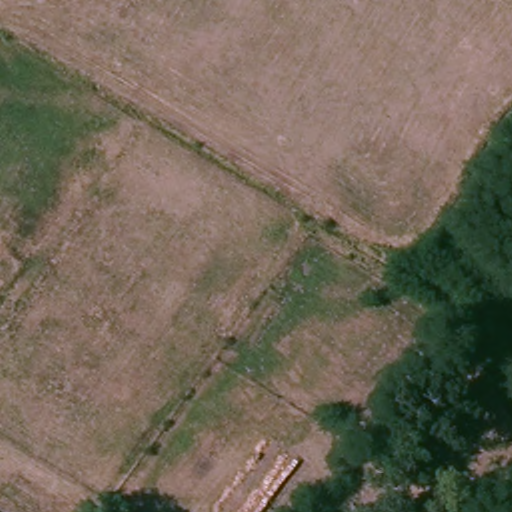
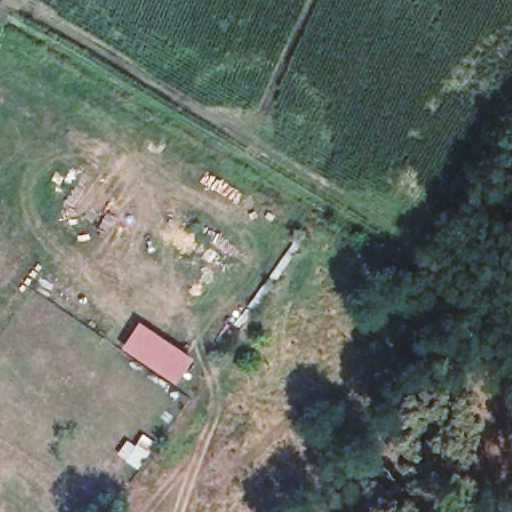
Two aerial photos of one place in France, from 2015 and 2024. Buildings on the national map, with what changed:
new [(123,347),(140,322),(193,360),(176,385),(123,347)]

